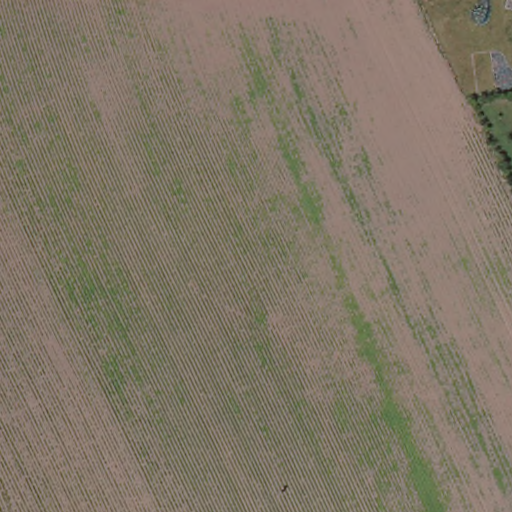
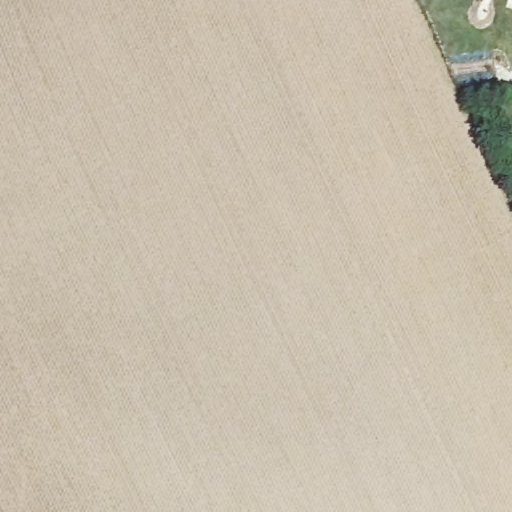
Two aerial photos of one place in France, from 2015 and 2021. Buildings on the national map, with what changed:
[]

